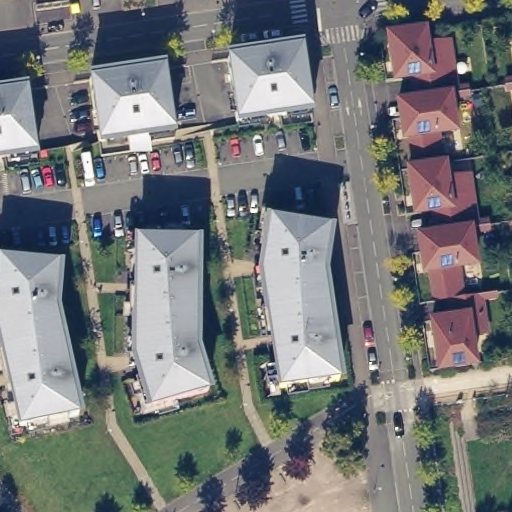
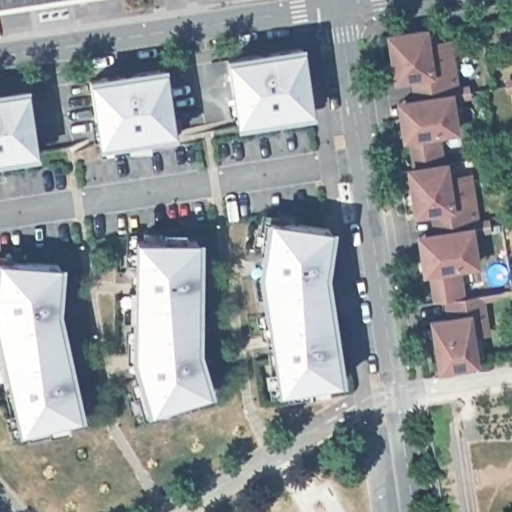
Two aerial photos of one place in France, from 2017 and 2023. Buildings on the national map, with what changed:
unchanged [(435,373),(427,317),(443,315),(441,302),(429,305),(425,276),(420,277),(415,233),(430,231),(428,216),(412,217),(404,166),(410,165),(406,142),(400,142),(393,99),(407,97),(406,81),(391,82),(384,32),(425,27),(428,41),(452,37),(458,87),(467,86),(470,97),(453,100),(458,135),(443,137),(447,162),(449,175),(472,172),(480,221),(488,220),(490,233),(474,236),(478,267),(461,269),(464,296),(496,292),(497,301),(485,303),(489,335),(473,337),(477,366),(435,373)]
unchanged [(512,43),(512,58),(510,43),(512,43)]
unchanged [(310,108),(236,120),(226,58),(301,49),(310,108)]
unchanged [(172,128),(127,136),(129,146),(99,150),(98,140),(88,142),(85,126),(97,124),(89,78),(163,67),(172,128)]
unchanged [(504,79),(512,77),(512,93),(506,94),(504,79)]
unchanged [(37,157),(0,162),(0,88),(28,84),(37,157)]
unchanged [(325,271),(334,270),(350,370),(341,388),(280,398),(268,389),(255,296),(263,295),(261,265),(269,216),(328,226),(325,271)]
unchanged [(200,355),(211,394),(145,413),(130,362),(131,262),(120,262),(120,244),(131,244),(131,237),(161,239),(162,229),(185,229),(185,239),(200,239),(200,355)]
unchanged [(66,421),(69,428),(46,432),(44,426),(16,432),(13,422),(3,425),(0,414),(0,410),(9,408),(0,370),(0,259),(63,263),(60,310),(85,416),(66,421)]

